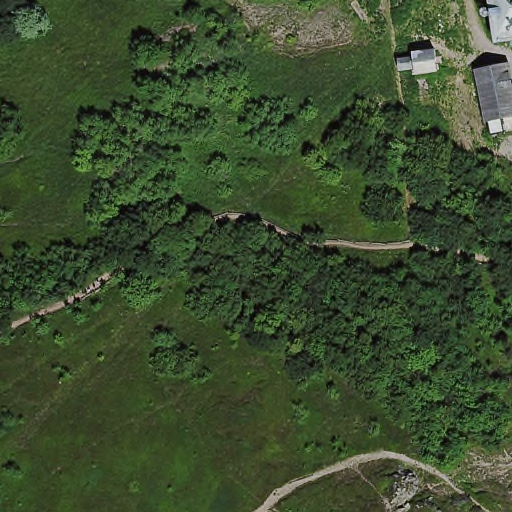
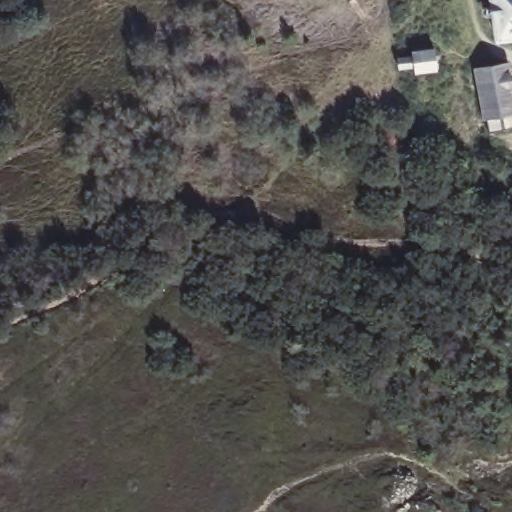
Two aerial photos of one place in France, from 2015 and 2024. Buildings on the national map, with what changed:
unchanged [(491,45),(484,0),(512,0),(512,42),(491,45)]
unchanged [(394,59),(409,57),(409,52),(434,49),(437,69),(412,72),(411,67),(396,69),(394,59)]
unchanged [(506,67),(512,110),(512,117),(484,121),(477,71),(506,67)]

